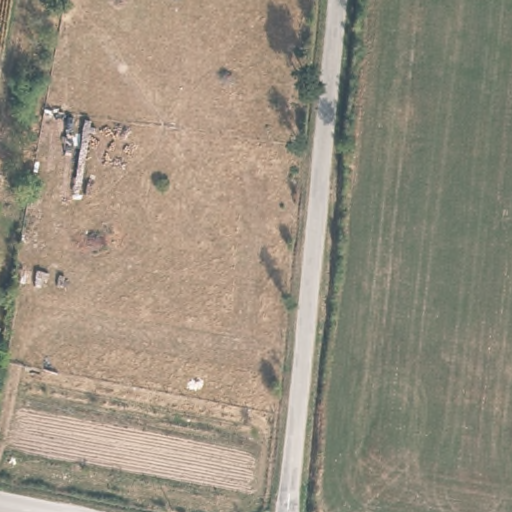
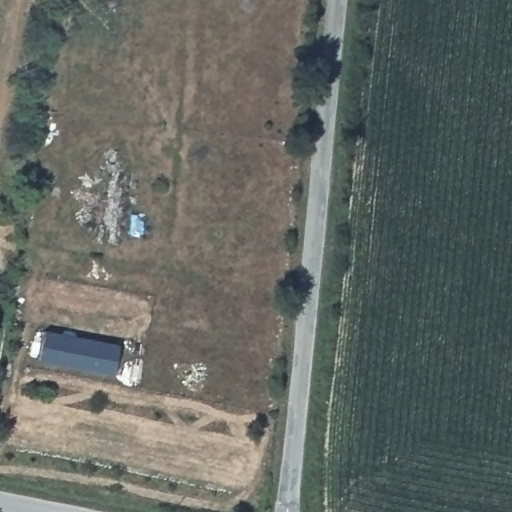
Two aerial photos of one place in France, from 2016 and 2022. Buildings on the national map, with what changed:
new [(116,345),(110,373),(36,358),(42,329),(116,345)]

